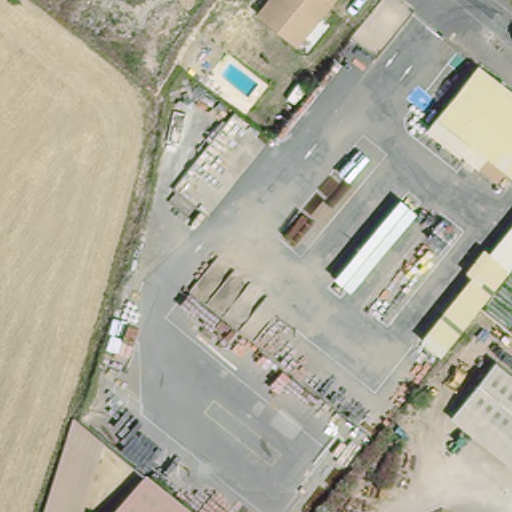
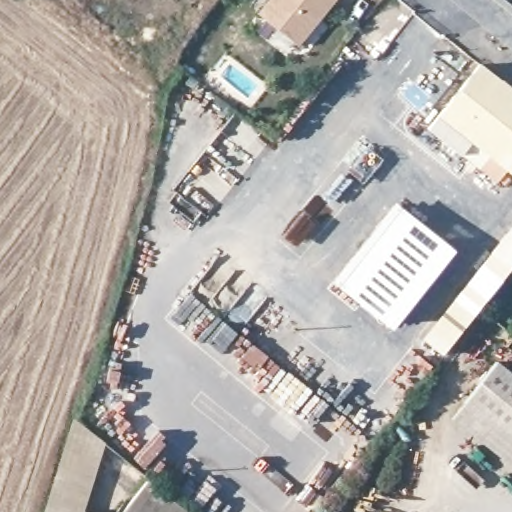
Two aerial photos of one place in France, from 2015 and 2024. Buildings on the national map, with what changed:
unchanged [(303,47),(262,16),(276,0),(340,0),(303,47)]
unchanged [(476,65),(512,92),(512,173),(506,167),(497,177),(478,161),(430,125),(439,114),(476,65)]
demolished [(404,197),(424,211),(355,291),(337,278),(404,197)]
new [(455,249),(392,328),(332,281),(395,201),(455,249)]
unchanged [(492,249),(512,223),(512,262),(512,263),(492,249)]
unchanged [(512,263),(480,300),(461,286),(492,249),(512,263)]
unchanged [(480,300),(442,349),(422,336),(461,286),(480,300)]
unchanged [(512,371),(512,438),(465,400),(497,360),(512,371)]
unchanged [(512,438),(512,463),(452,416),(465,400),(512,438)]
unchanged [(109,441),(87,512),(46,512),(76,416),(109,441)]
unchanged [(191,512),(127,512),(152,480),(191,512)]

